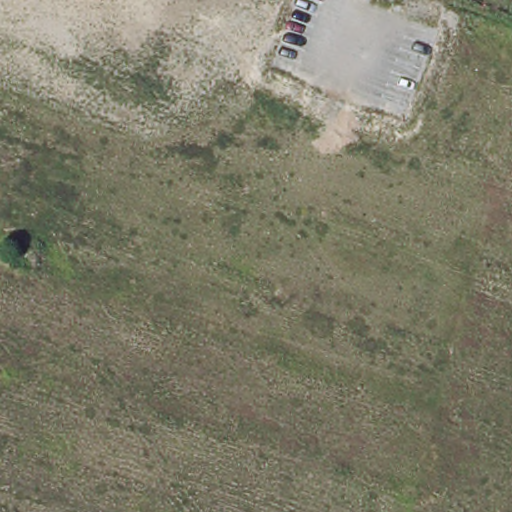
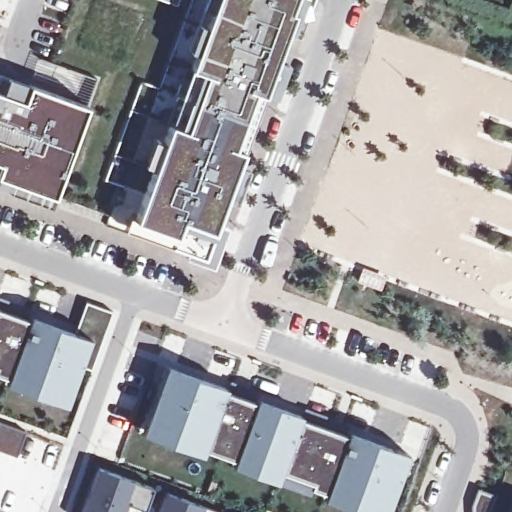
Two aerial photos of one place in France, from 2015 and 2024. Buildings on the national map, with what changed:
new [(170,124),(190,67),(215,0),(293,0),(290,11),(292,12),(263,93),(242,151),(213,232),(204,257),(122,230),(128,216),(137,219),(170,124)]
new [(160,0),(180,0),(177,7),(160,0)]
new [(0,32),(0,26),(2,27),(0,32)]
new [(7,77),(30,85),(87,106),(54,197),(50,206),(8,190),(0,187),(0,77),(5,80),(7,77)]
new [(29,316),(74,333),(85,302),(110,312),(90,368),(80,365),(67,406),(5,383),(7,377),(0,374),(0,309),(29,318),(29,316)]
new [(227,387),(225,391),(255,402),(256,397),(302,415),(300,418),(345,433),(347,430),(405,453),(384,512),(364,512),(324,497),(325,492),(310,487),(312,482),(282,471),(277,482),(232,466),(235,457),(206,447),(202,456),(140,434),(167,366),(227,387)]
new [(155,482),(152,487),(144,510),(126,503),(123,512),(75,512),(95,460),(155,482)]
new [(204,506),(202,512),(156,512),(165,491),(204,506)]

